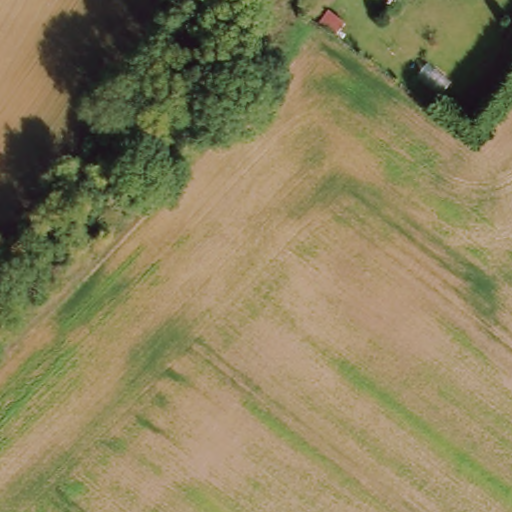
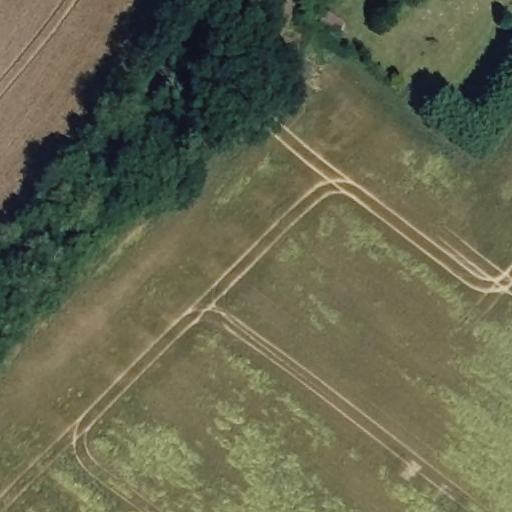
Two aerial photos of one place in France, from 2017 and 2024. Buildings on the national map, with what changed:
unchanged [(328,15),(344,28),(334,37),(320,26),(328,15)]

